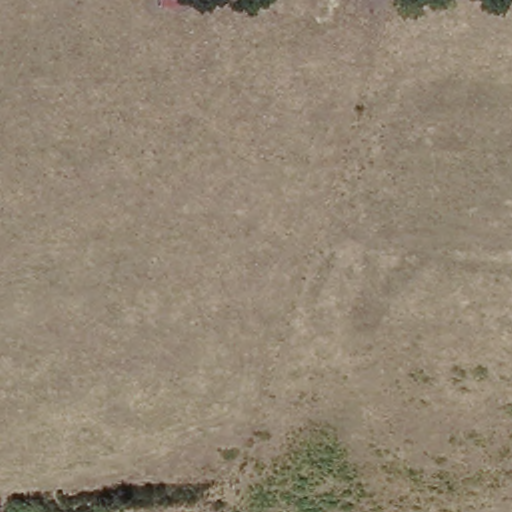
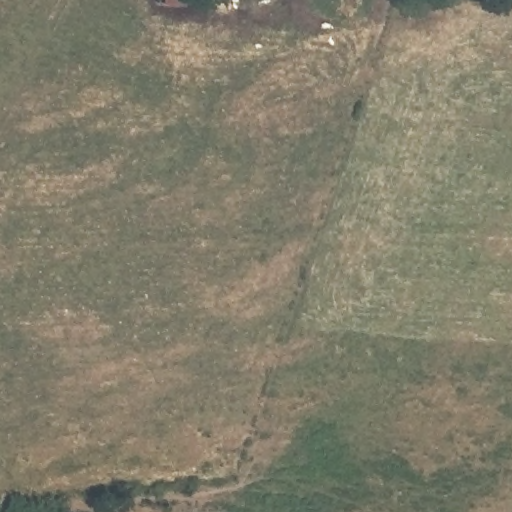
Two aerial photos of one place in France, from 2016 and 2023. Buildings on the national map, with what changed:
unchanged [(158,0),(184,0),(184,2),(157,2),(158,0)]

